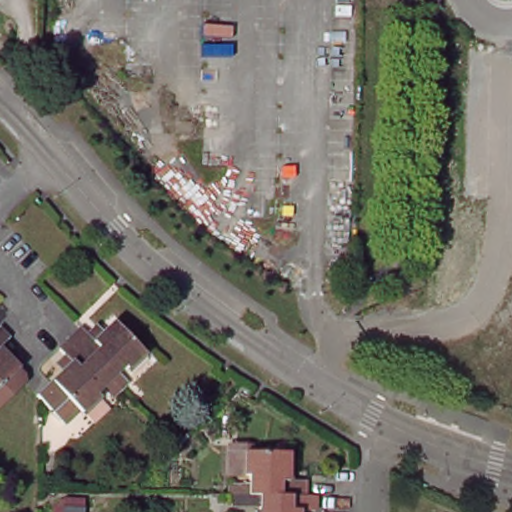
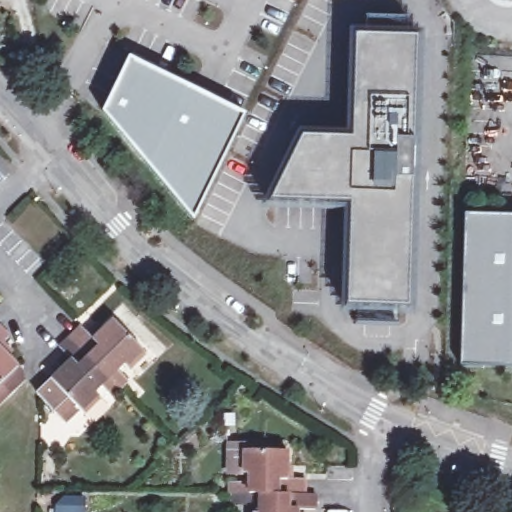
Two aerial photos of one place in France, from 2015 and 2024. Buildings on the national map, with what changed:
new [(302,138),(350,139),(355,37),(416,39),(409,307),(346,307),(350,203),(270,201),(302,138)]
new [(242,115),(192,221),(101,113),(128,57),(242,115)]
new [(512,368),(460,367),(464,216),(512,217),(512,368)]
unchanged [(105,397),(97,388),(80,404),(78,402),(64,415),(52,401),(49,402),(37,388),(60,367),(50,357),(59,348),(56,344),(67,334),(78,324),(80,327),(92,318),(101,327),(108,322),(135,352),(119,368),(125,377),(117,386),(105,397)]
unchanged [(2,346),(26,372),(26,380),(0,404),(0,328),(9,339),(2,346)]
unchanged [(231,482),(250,483),(250,477),(246,476),(245,457),(288,457),(288,482),(305,483),(305,497),(261,497),(251,497),(230,497),(231,482)]
unchanged [(315,512),(261,512),(261,497),(305,497),(315,498),(315,512)]

